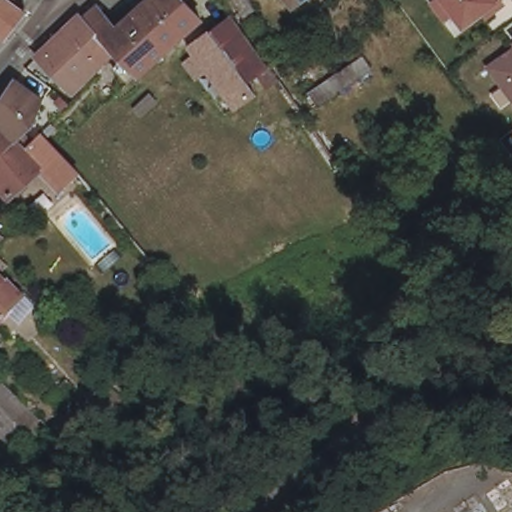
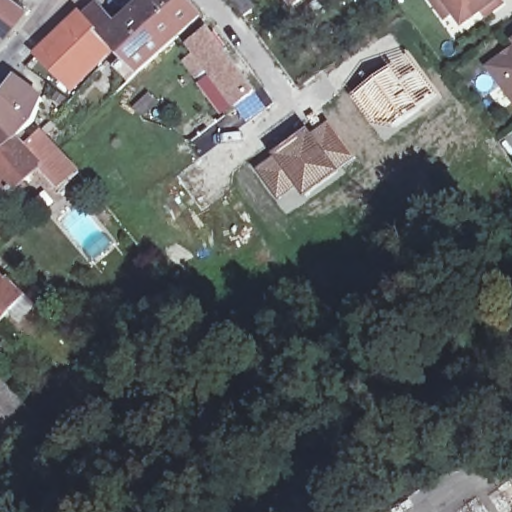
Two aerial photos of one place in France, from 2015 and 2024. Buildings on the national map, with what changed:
unchanged [(25,7),(5,35),(0,31),(0,0),(14,0),(25,7)]
unchanged [(122,96),(107,80),(118,70),(116,67),(126,58),(122,54),(118,50),(95,25),(110,12),(123,24),(152,0),(190,0),(206,19),(177,43),(132,84),(133,85),(122,96)]
new [(233,0),(248,0),(256,11),(245,17),(233,0)]
demolished [(244,0),(259,0),(268,12),(257,19),(244,0)]
unchanged [(300,1),(299,0),(301,0),(300,1)]
unchanged [(435,0),(494,0),(455,27),(435,0)]
unchanged [(100,67),(82,84),(83,86),(80,89),(56,62),(47,53),(49,51),(70,30),(87,16),(95,25),(118,50),(100,67)]
unchanged [(232,16),(270,70),(248,86),(208,34),(232,16)]
unchanged [(257,97),(235,110),(234,108),(208,75),(197,81),(187,67),(198,60),(190,48),(208,34),(248,86),(257,97)]
unchanged [(512,41),(512,47),(509,44),(512,41)]
unchanged [(512,48),(512,108),(485,70),(512,48)]
new [(407,51),(440,95),(418,110),(407,97),(390,67),(407,51)]
unchanged [(312,91),(362,56),(372,69),(319,104),(312,91)]
new [(390,67),(407,97),(402,100),(405,106),(372,125),(352,95),(390,67)]
unchanged [(16,75),(45,96),(33,120),(17,135),(0,117),(0,98),(16,75)]
unchanged [(35,166),(11,188),(0,175),(0,117),(17,135),(25,142),(41,125),(58,143),(77,161),(58,180),(57,177),(50,184),(35,166)]
new [(310,129),(312,132),(330,120),(357,158),(304,198),(296,187),(277,201),(255,170),(310,129)]
unchanged [(28,313),(17,302),(0,321),(0,279),(7,285),(12,281),(24,294),(35,306),(28,313)]
unchanged [(37,417),(7,446),(0,439),(0,381),(37,417)]
unchanged [(47,431),(67,412),(84,430),(66,450),(47,431)]

